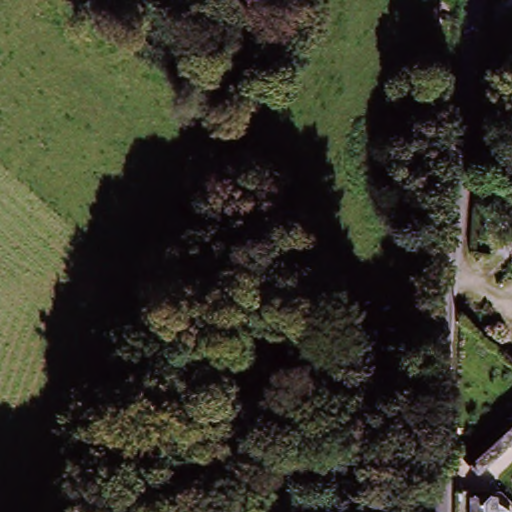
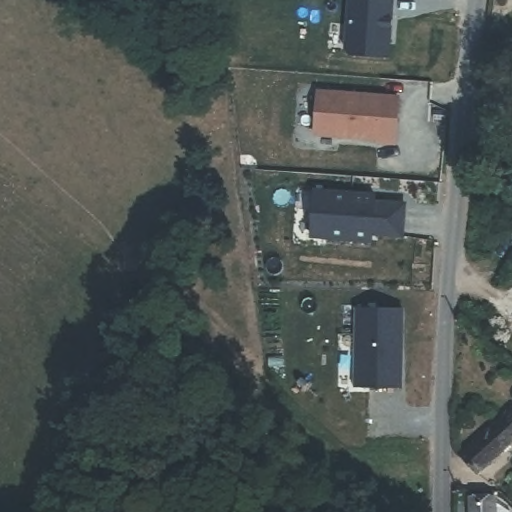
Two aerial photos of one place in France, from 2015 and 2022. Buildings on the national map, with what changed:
new [(400,96),(397,145),(377,146),(378,141),(313,138),(316,91),(400,96)]
new [(377,192),(377,199),(407,201),(404,237),(376,235),(375,241),(311,238),(312,189),(377,192)]
new [(491,230),(476,218),(492,196),(507,208),(512,211),(512,245),(491,230)]
new [(403,306),(400,384),(356,385),(355,307),(403,306)]
unchanged [(512,402),(512,445),(480,477),(458,455),(512,402)]
unchanged [(495,507),(494,512),(474,512),(474,507),(495,507)]

